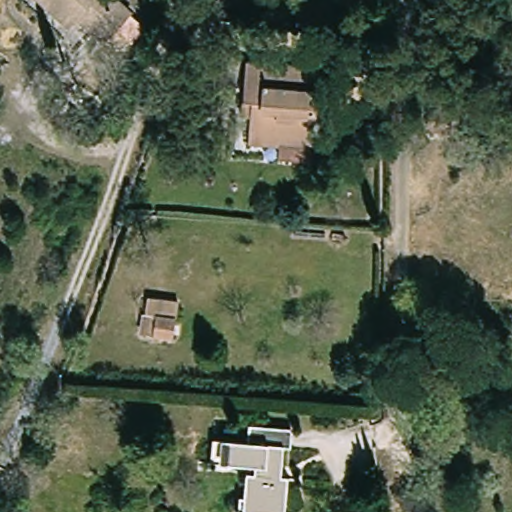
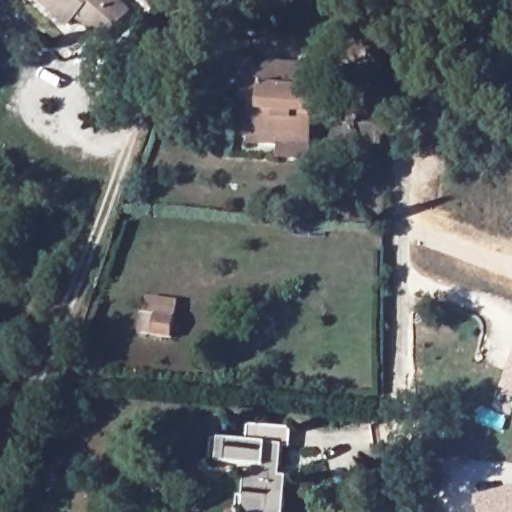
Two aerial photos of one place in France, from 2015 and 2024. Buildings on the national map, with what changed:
unchanged [(46,0),(118,0),(135,15),(113,42),(101,32),(86,19),(78,29),(46,0)]
unchanged [(253,149),(253,137),(254,124),(244,124),(245,109),(248,68),(321,73),(316,142),(316,152),(253,149)]
unchanged [(445,122),(424,119),(428,99),(449,102),(445,122)]
unchanged [(178,340),(141,336),(148,296),(183,300),(178,340)]
unchanged [(220,442),(251,445),(253,427),(298,430),(296,450),(292,451),(291,470),(286,471),(286,478),(296,480),(293,512),(244,512),(245,503),(250,503),(251,477),(257,477),(257,470),(218,468),(220,442)]
new [(476,498),(512,489),(512,512),(480,512),(476,498)]

